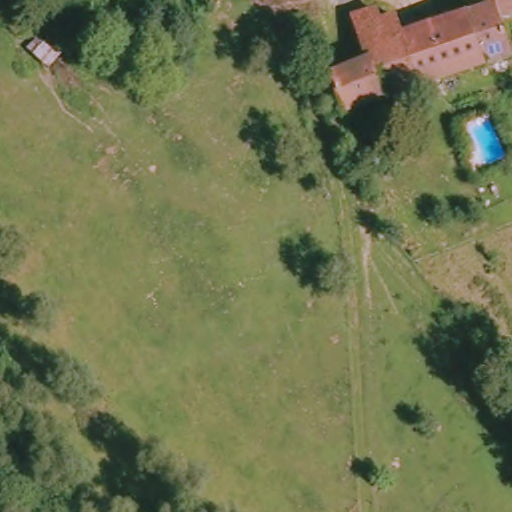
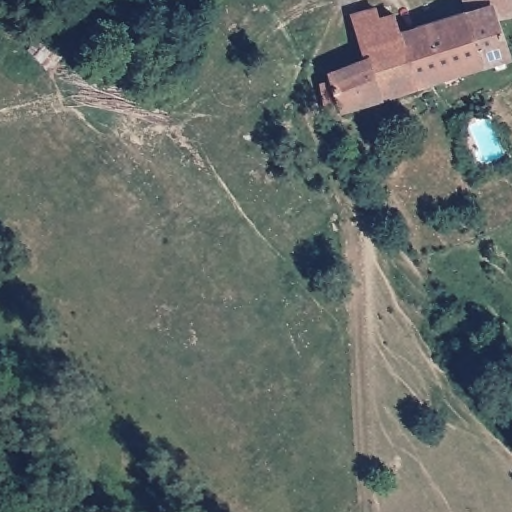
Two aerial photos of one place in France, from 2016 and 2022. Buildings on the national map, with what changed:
unchanged [(412,33),(473,12),(471,0),(512,0),(512,8),(506,11),(512,30),(512,53),(430,85),(412,33)]
unchanged [(336,122),(321,83),(328,81),(323,65),(365,51),(357,17),(381,12),(384,19),(404,13),(412,33),(430,85),(336,122)]

